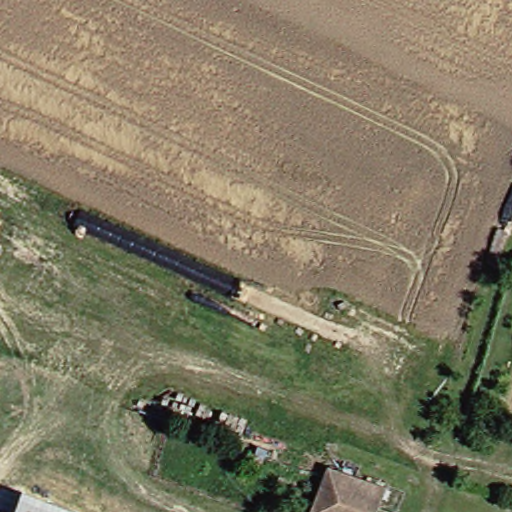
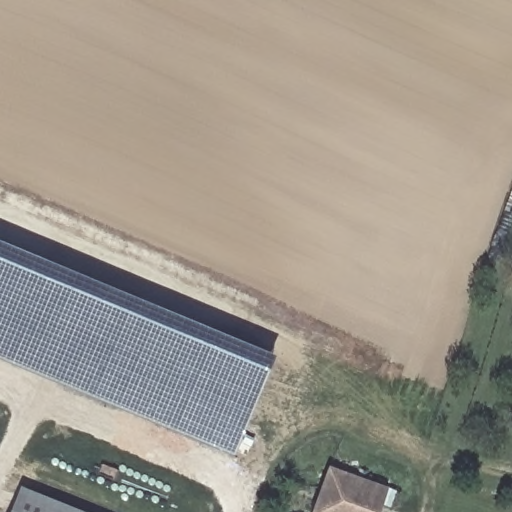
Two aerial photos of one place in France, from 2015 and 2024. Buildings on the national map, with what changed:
new [(0,361),(0,247),(275,361),(234,458),(0,361)]
unchanged [(383,512),(318,512),(334,473),(390,494),(383,512)]
new [(11,512),(20,489),(75,512),(11,512)]

